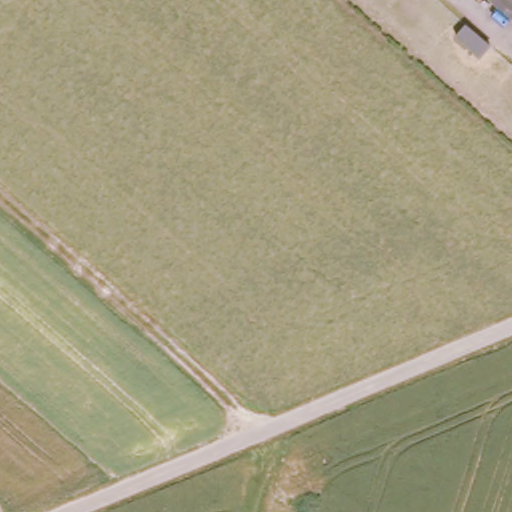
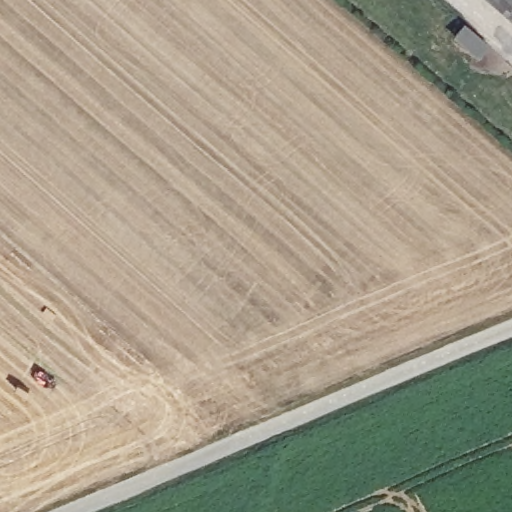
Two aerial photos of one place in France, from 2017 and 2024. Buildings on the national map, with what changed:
unchanged [(512,15),(495,0),(512,0),(512,15)]

